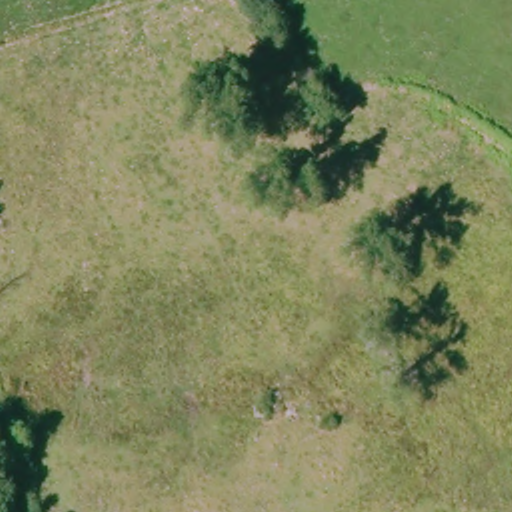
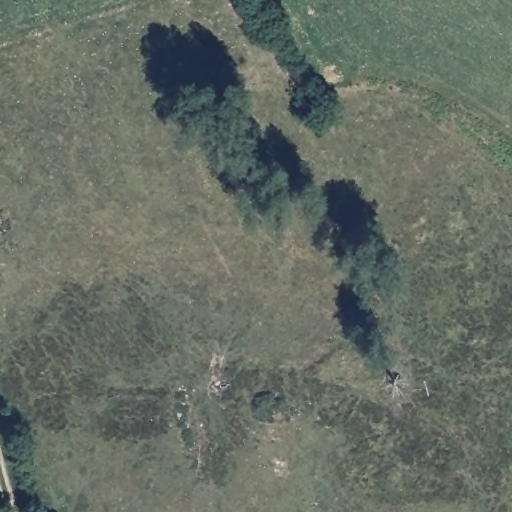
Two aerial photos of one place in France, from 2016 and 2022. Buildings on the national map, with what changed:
[]

